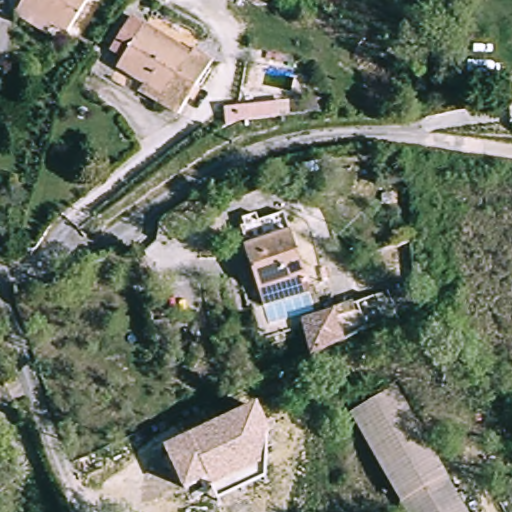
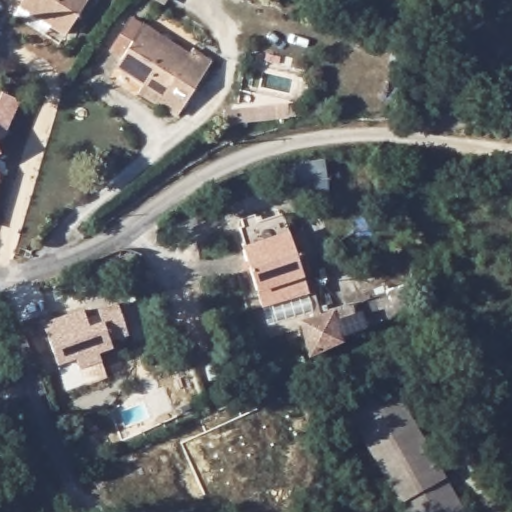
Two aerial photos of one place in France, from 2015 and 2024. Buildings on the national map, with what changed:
unchanged [(87,0),(67,33),(51,21),(41,34),(11,14),(18,0),(87,0)]
unchanged [(117,67),(123,56),(111,49),(121,31),(129,15),(147,24),(192,48),(194,44),(214,55),(173,121),(154,110),(136,100),(145,84),(117,67)]
new [(20,102),(4,138),(0,140),(0,92),(20,102)]
unchanged [(228,123),(226,109),(284,104),(286,118),(228,123)]
demolished [(316,106),(319,118),(303,121),(300,109),(316,106)]
demolished [(252,131),(231,144),(229,129),(235,125),(282,116),(283,125),(252,131)]
new [(1,154),(0,154),(0,153),(1,154)]
unchanged [(253,230),(285,224),(307,293),(258,305),(243,258),(253,254),(249,240),(255,238),(253,230)]
unchanged [(378,330),(339,349),(319,310),(358,294),(378,330)]
new [(82,309),(88,327),(101,322),(96,309),(116,302),(128,332),(109,339),(112,346),(98,351),(101,359),(79,368),(75,358),(57,364),(41,324),(82,309)]
unchanged [(350,413),(394,389),(463,506),(467,512),(411,512),(350,413)]

